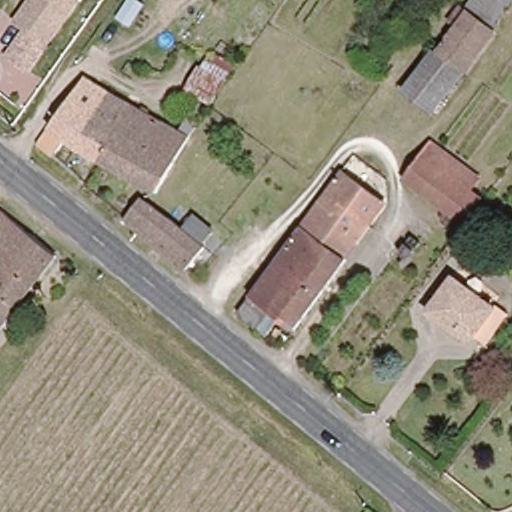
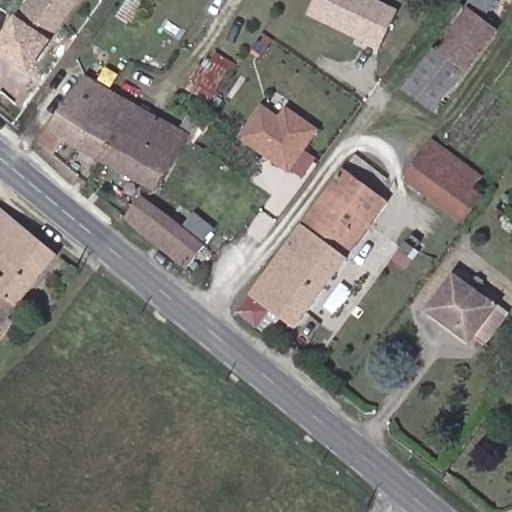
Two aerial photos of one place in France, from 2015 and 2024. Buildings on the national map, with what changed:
unchanged [(19,21),(33,0),(80,0),(51,42),(27,27),(19,21)]
unchanged [(113,17),(126,0),(140,0),(146,5),(130,27),(113,17)]
new [(316,0),(370,0),(397,12),(381,48),(309,14),(316,0)]
unchanged [(504,0),(486,25),(498,33),(436,112),(408,92),(439,52),(442,54),(472,16),(468,13),(478,0),(504,0)]
demolished [(199,22),(212,30),(214,31),(202,50),(188,40),(199,22)]
unchanged [(32,72),(6,56),(27,27),(51,42),(32,72)]
unchanged [(86,51),(92,42),(111,56),(105,64),(86,51)]
unchanged [(175,87),(209,47),(236,66),(208,109),(175,87)]
unchanged [(51,132),(88,77),(191,136),(157,192),(51,132)]
new [(288,175),(238,139),(262,104),(279,117),(286,107),(320,130),(288,175)]
unchanged [(439,151),(478,181),(471,191),(482,199),(461,226),(406,184),(426,159),(431,162),(439,151)]
unchanged [(343,171),(385,202),(372,219),(378,224),(298,330),(273,310),(258,328),(237,311),(264,276),(343,171)]
unchanged [(191,217),(192,216),(213,232),(211,234),(202,245),(205,248),(189,271),(122,217),(140,195),(181,229),(191,217)]
unchanged [(62,262),(0,333),(0,212),(2,210),(62,262)]
unchanged [(397,245),(410,229),(420,237),(406,253),(397,245)]
unchanged [(457,332),(430,311),(457,275),(497,304),(475,333),(469,342),(457,332)]

